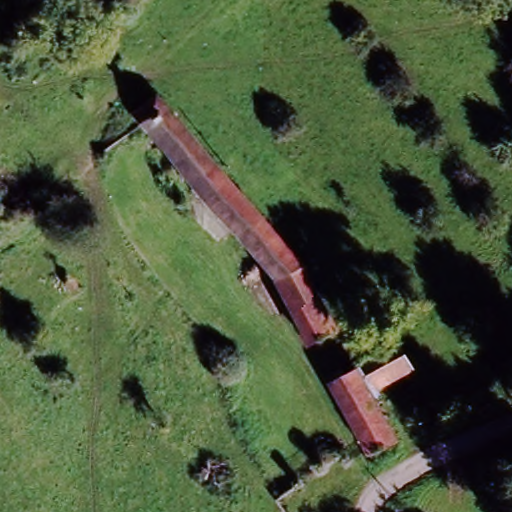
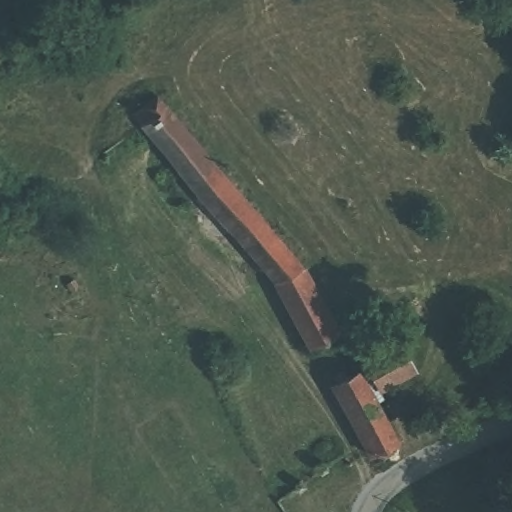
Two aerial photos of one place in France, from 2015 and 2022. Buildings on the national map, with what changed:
unchanged [(132,117),(156,98),(185,133),(161,152),(132,117)]
unchanged [(185,133),(294,263),(329,328),(304,344),(269,280),(161,152),(185,133)]
unchanged [(76,291),(60,271),(69,264),(84,283),(76,291)]
unchanged [(365,457),(329,389),(356,375),(364,370),(364,366),(399,347),(414,371),(377,391),(368,396),(393,441),(365,457)]

